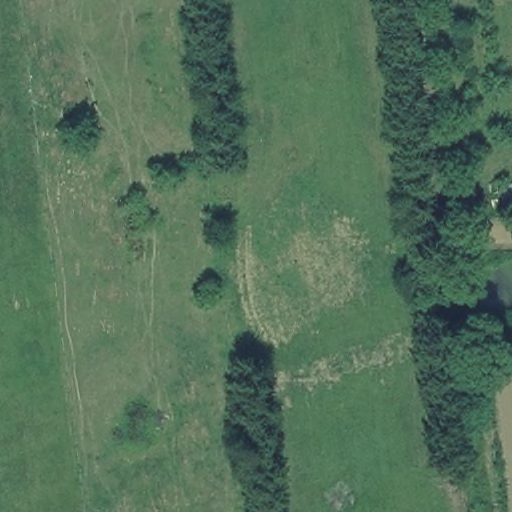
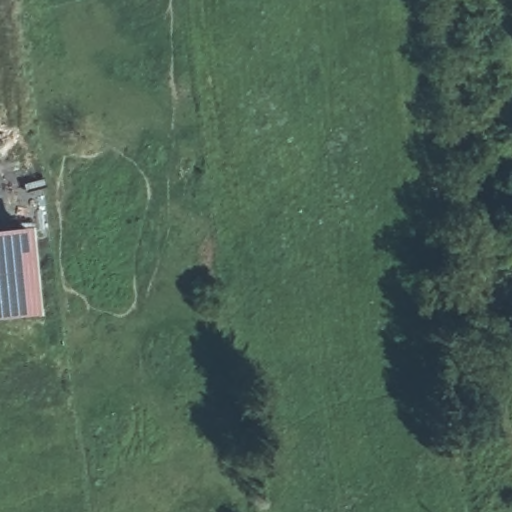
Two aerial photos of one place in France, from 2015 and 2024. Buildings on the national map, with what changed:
unchanged [(512,186),(512,205),(498,207),(495,189),(512,186)]
new [(43,315),(0,320),(0,237),(35,234),(43,315)]

